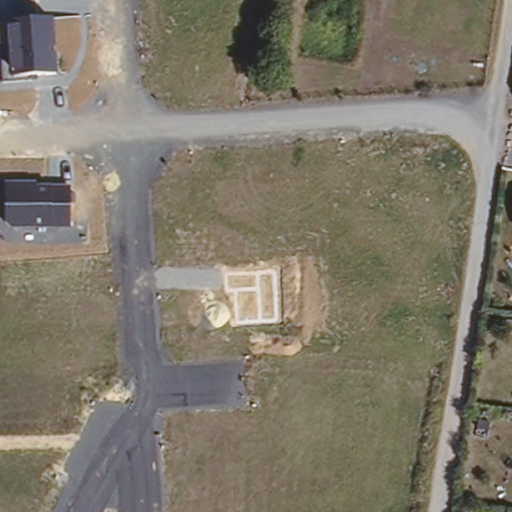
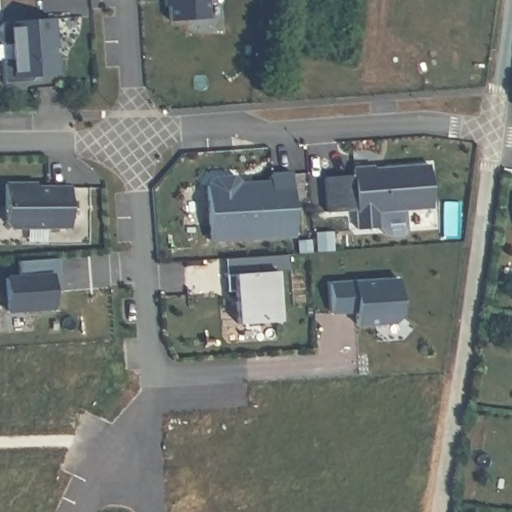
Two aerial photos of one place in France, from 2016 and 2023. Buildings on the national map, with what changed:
new [(161,0),(200,0),(201,19),(162,22),(161,0)]
unchanged [(54,18),(59,74),(36,75),(36,84),(3,86),(1,62),(8,62),(6,44),(0,46),(0,27),(9,22),(54,18)]
new [(365,207),(366,224),(346,225),(345,205),(315,207),(313,172),(343,171),(342,164),(363,162),(363,167),(369,167),(368,165),(418,161),(421,204),(365,207)]
new [(290,235),(205,240),(201,185),(204,185),(204,182),(209,177),(228,175),(234,180),(234,182),(266,181),(265,173),(287,172),(290,235)]
unchanged [(70,228),(15,230),(5,221),(6,184),(36,183),(36,187),(70,187),(70,228)]
new [(222,291),(220,257),(284,252),(285,269),(270,270),(274,320),(233,322),(230,290),(222,291)]
new [(56,292),(50,292),(48,275),(51,307),(3,311),(1,277),(14,276),(13,260),(53,257),(54,275),(56,292)]
new [(390,309),(385,315),(346,318),(344,293),(337,293),(338,305),(321,306),(319,275),(387,270),(390,309)]
new [(337,293),(344,293),(345,305),(338,305),(337,293)]

